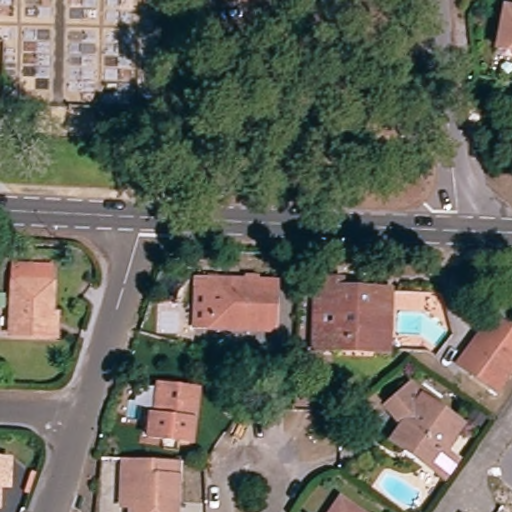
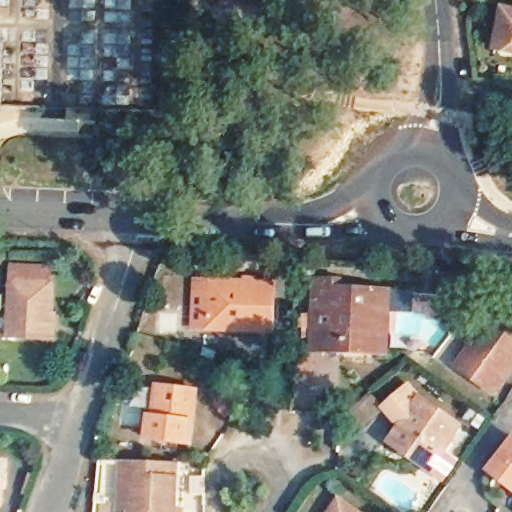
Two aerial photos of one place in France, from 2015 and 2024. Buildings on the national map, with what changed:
unchanged [(495,57),(497,50),(503,17),(512,19),(512,60),(495,57)]
unchanged [(48,346),(8,343),(13,272),(50,275),(49,290),(52,290),(50,321),(48,346)]
unchanged [(322,323),(323,282),(344,283),(343,293),(403,295),(402,333),(397,333),(396,363),(355,361),(321,360),(322,323)]
unchanged [(204,314),(205,287),(270,291),(268,338),(200,335),(189,333),(190,313),(204,314)]
unchanged [(4,316),(0,316),(0,304),(5,304),(4,316)]
unchanged [(512,337),(512,356),(487,390),(458,370),(491,322),(512,337)]
unchanged [(150,418),(152,418),(156,388),(197,393),(190,445),(147,440),(150,418)]
unchanged [(440,467),(430,482),(396,458),(407,443),(390,425),(413,405),(420,413),(462,443),(452,457),(454,458),(445,470),(440,467)]
new [(486,469),(512,437),(512,490),(486,469)]
unchanged [(177,470),(175,512),(130,512),(131,483),(120,482),(121,467),(121,466),(160,469),(177,470)]
unchanged [(5,485),(0,485),(0,468),(5,468),(5,485)]
unchanged [(338,507),(345,512),(335,512),(338,507)]

